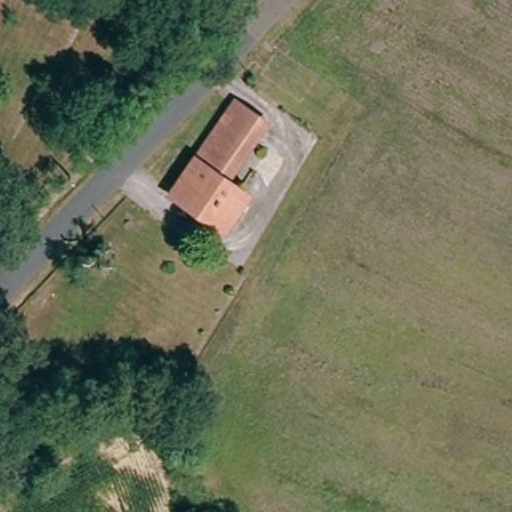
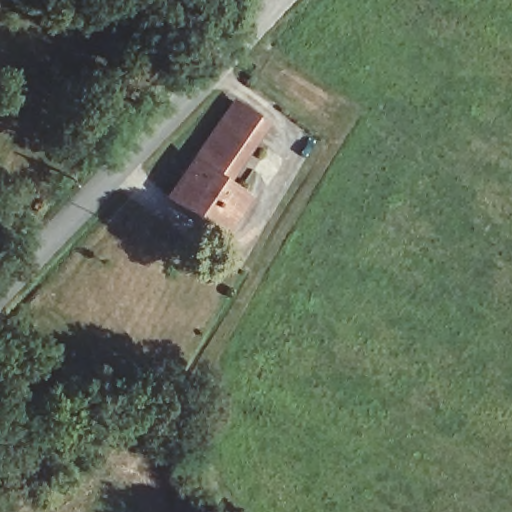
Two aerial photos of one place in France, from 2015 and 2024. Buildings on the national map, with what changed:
unchanged [(259,124),(220,180),(240,195),(217,234),(163,197),(232,104),(259,124)]

